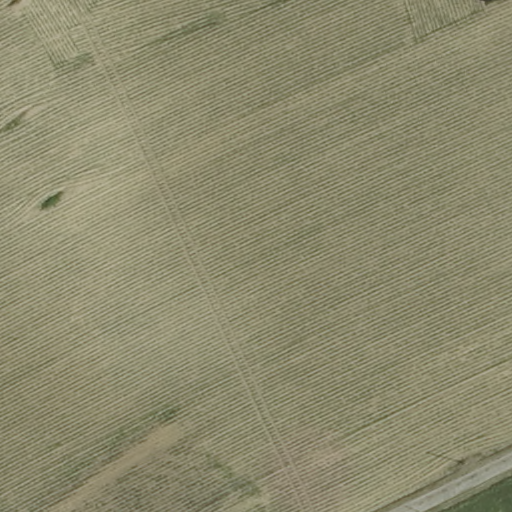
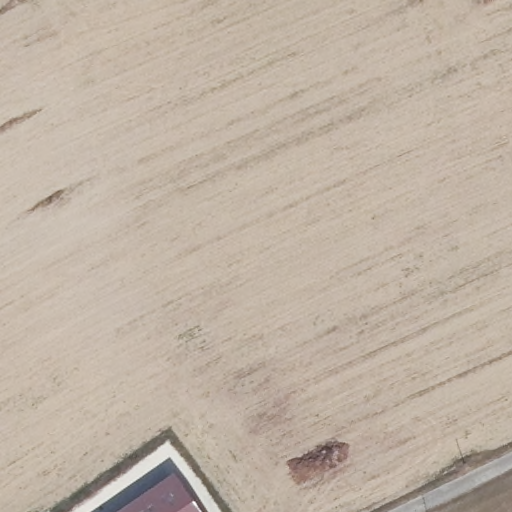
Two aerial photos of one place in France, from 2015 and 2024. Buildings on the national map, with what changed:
new [(204,512),(114,512),(175,469),(204,512)]

